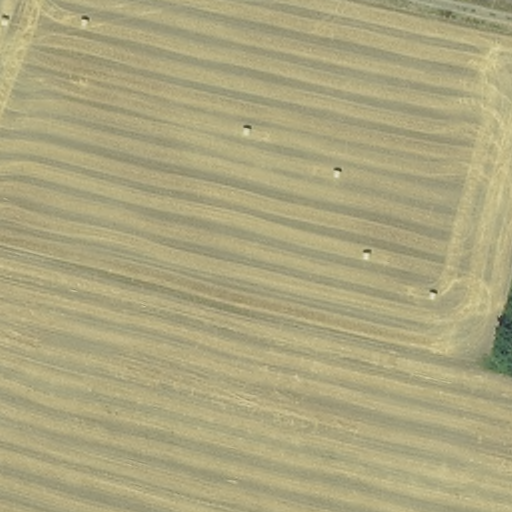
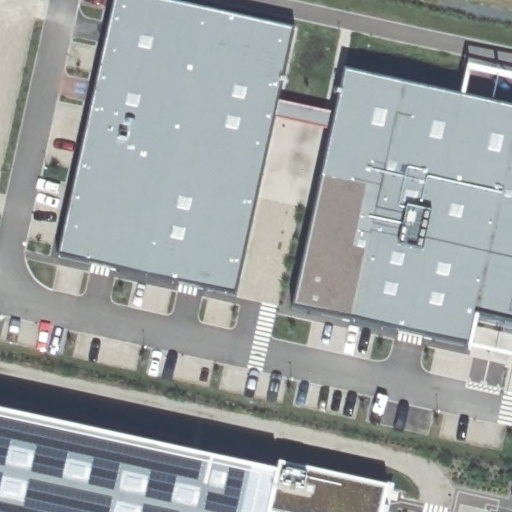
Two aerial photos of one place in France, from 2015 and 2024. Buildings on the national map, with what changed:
new [(297,30),(241,297),(64,258),(120,0),(157,0),(297,30)]
new [(482,317),(473,347),(304,306),(352,75),(512,108),(512,322),(482,317)]
new [(277,475),(279,465),(388,489),(384,509),(389,510),(388,512),(0,512),(0,414),(277,475)]

